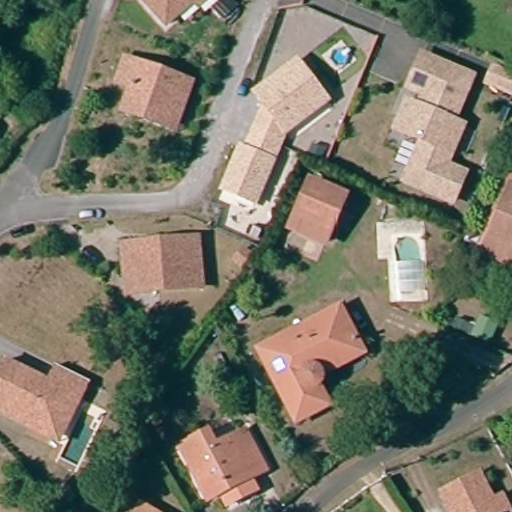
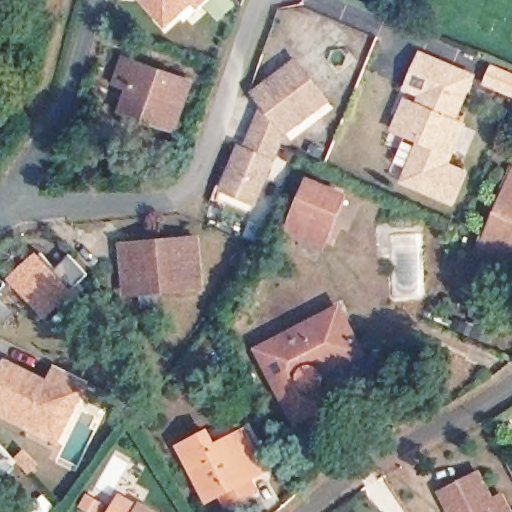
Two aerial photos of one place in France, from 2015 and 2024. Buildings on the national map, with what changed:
unchanged [(191,3),(165,28),(140,0),(206,0),(196,9),(191,3)]
unchanged [(230,0),(238,9),(225,20),(215,10),(225,0),(230,0)]
unchanged [(418,57),(448,70),(468,78),(450,123),(459,127),(442,166),(461,175),(450,203),(401,183),(418,142),(403,136),(420,96),(404,90),(412,71),(418,57)]
unchanged [(219,189),(237,143),(245,146),(256,113),(261,108),(250,91),(298,58),(333,102),(285,137),(259,206),(219,189)]
unchanged [(126,115),(130,103),(134,91),(120,87),(128,61),(195,84),(181,125),(179,132),(126,115)]
unchanged [(483,83),(490,68),(512,78),(512,93),(511,96),(483,83)]
unchanged [(482,255),(488,241),(512,184),(512,267),(482,255)]
unchanged [(289,236),(306,185),(341,198),(322,248),(289,236)]
unchanged [(125,251),(150,248),(175,245),(200,242),(206,290),(144,298),(131,299),(129,280),(125,251)]
new [(48,319),(9,279),(37,253),(54,271),(71,255),(91,275),(76,292),(48,319)]
unchanged [(343,307),(362,349),(325,370),(321,384),(333,404),(299,422),(261,348),(343,307)]
unchanged [(0,415),(0,371),(5,362),(47,383),(55,367),(87,383),(80,399),(58,443),(15,423),(0,415)]
unchanged [(211,434),(217,447),(246,433),(268,471),(212,500),(184,448),(202,438),(211,434)]
unchanged [(438,496),(477,476),(490,497),(501,493),(512,510),(512,512),(448,512),(438,496)]
unchanged [(141,507),(150,512),(138,512),(141,507)]

